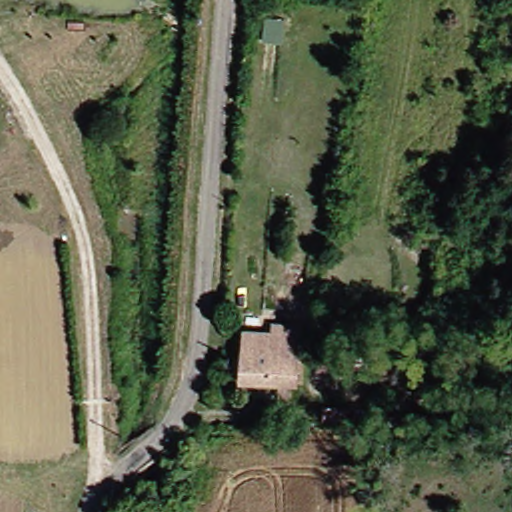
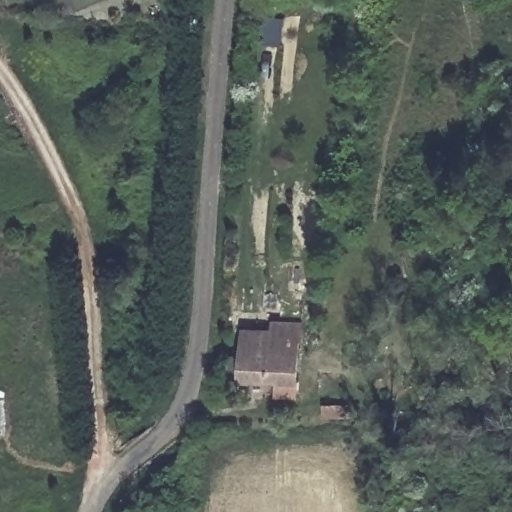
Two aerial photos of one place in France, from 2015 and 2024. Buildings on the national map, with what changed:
unchanged [(258,333),(258,323),(286,325),(282,385),(226,381),(229,331),(258,333)]

